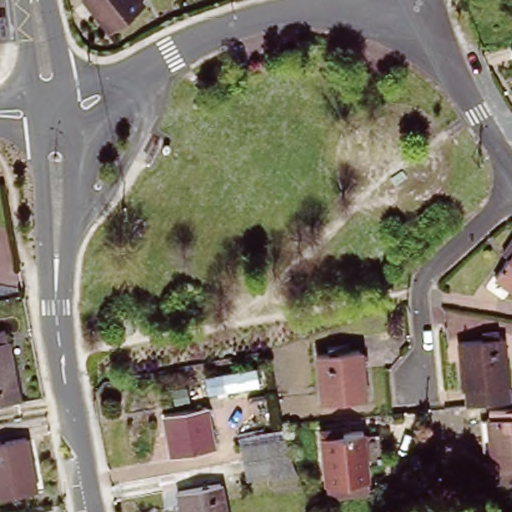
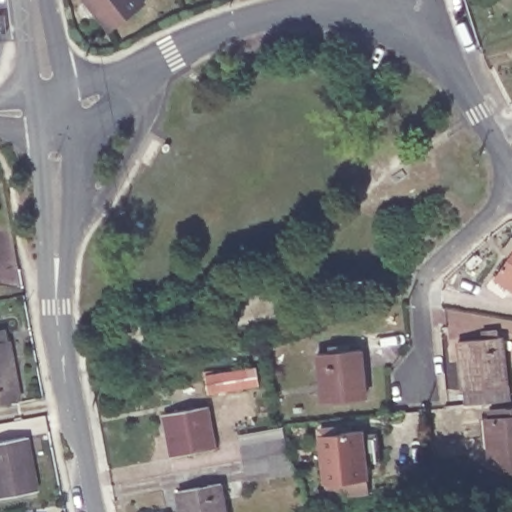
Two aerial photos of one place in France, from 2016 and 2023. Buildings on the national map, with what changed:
unchanged [(148,2),(114,29),(92,0),(147,0),(148,2)]
unchanged [(153,156),(160,160),(151,176),(145,172),(153,156)]
unchanged [(495,277),(507,258),(502,255),(512,241),(512,289),(495,277)]
unchanged [(157,312),(160,324),(147,326),(145,314),(157,312)]
unchanged [(459,404),(460,387),(459,337),(510,336),(510,386),(510,402),(459,404)]
unchanged [(0,338),(7,337),(9,347),(20,407),(0,410),(0,338)]
unchanged [(365,350),(370,398),(327,402),(323,353),(365,350)]
unchanged [(253,368),(256,384),(222,390),(220,374),(253,368)]
unchanged [(214,443),(172,451),(165,410),(207,402),(214,443)]
unchanged [(512,408),(512,466),(498,467),(492,417),(494,417),(493,410),(512,408)]
unchanged [(322,420),(363,416),(367,465),(369,479),(327,483),(326,469),(322,420)]
unchanged [(246,477),(243,461),(240,438),(284,430),(288,452),(298,472),(272,477),(247,482),(246,477)]
unchanged [(0,499),(0,444),(27,438),(37,492),(0,499)]
unchanged [(183,512),(179,492),(220,483),(226,512),(183,512)]

